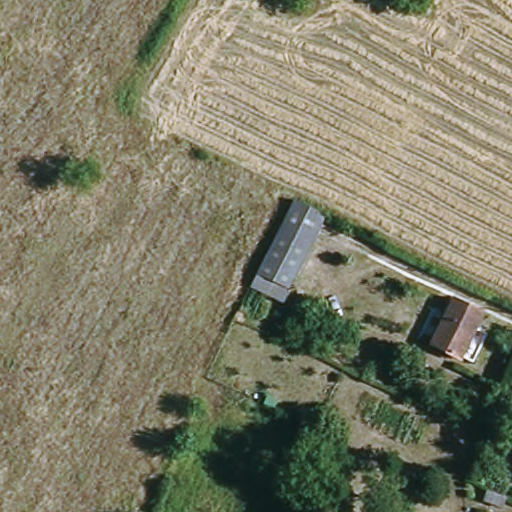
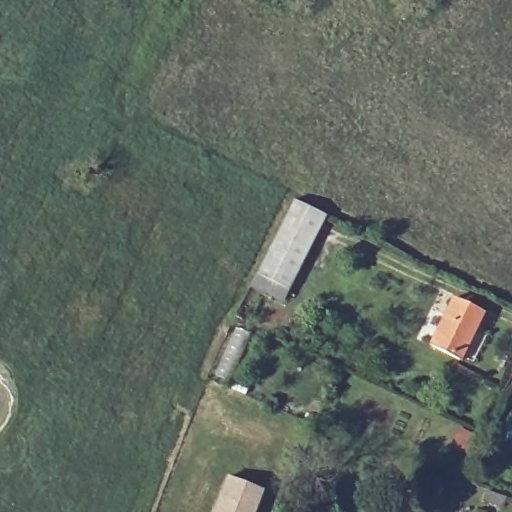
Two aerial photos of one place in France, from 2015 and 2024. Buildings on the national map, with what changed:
unchanged [(284,301),(252,285),(293,200),(326,215),(284,301)]
unchanged [(455,298),(482,313),(458,359),(431,345),(455,298)]
new [(263,490),(255,512),(214,512),(227,477),(263,490)]
unchanged [(485,502),(489,492),(508,500),(504,511),(485,502)]

